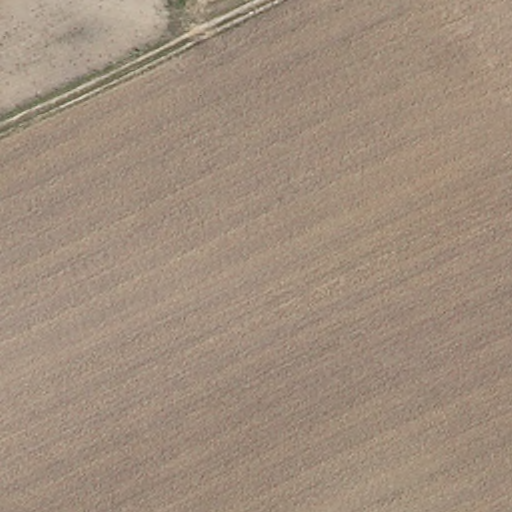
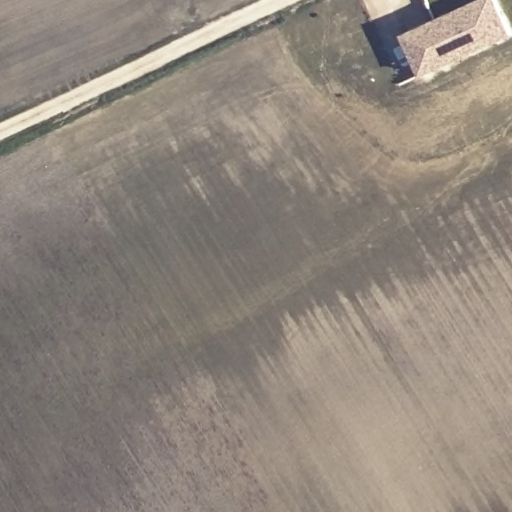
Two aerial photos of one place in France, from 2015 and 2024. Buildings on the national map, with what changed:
new [(406,33),(478,0),(499,0),(512,29),(512,36),(424,75),(406,33)]

